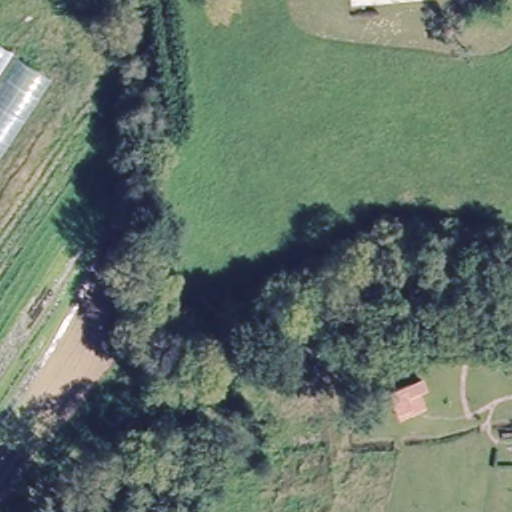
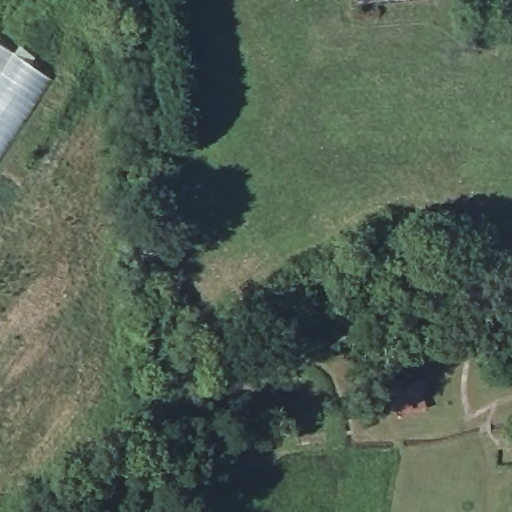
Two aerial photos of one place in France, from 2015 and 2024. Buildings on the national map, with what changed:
unchanged [(30,100),(0,145),(0,77),(30,100)]

